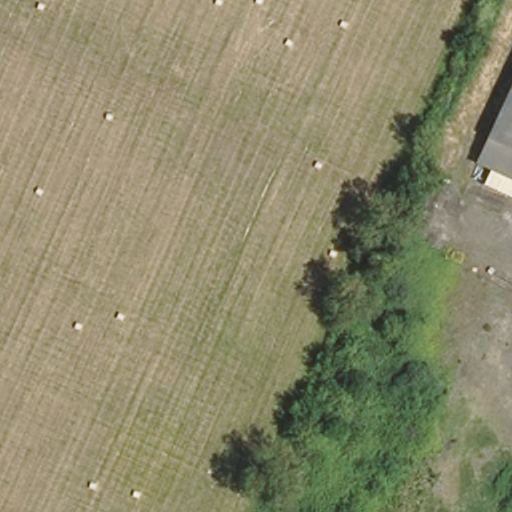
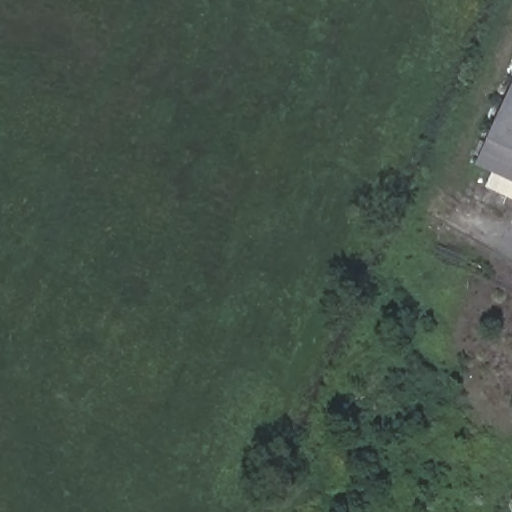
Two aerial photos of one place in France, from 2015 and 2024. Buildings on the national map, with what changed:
unchanged [(491,136),(512,90),(512,169),(482,156),(491,136)]
unchanged [(479,177),(512,194),(512,213),(470,197),(479,177)]

